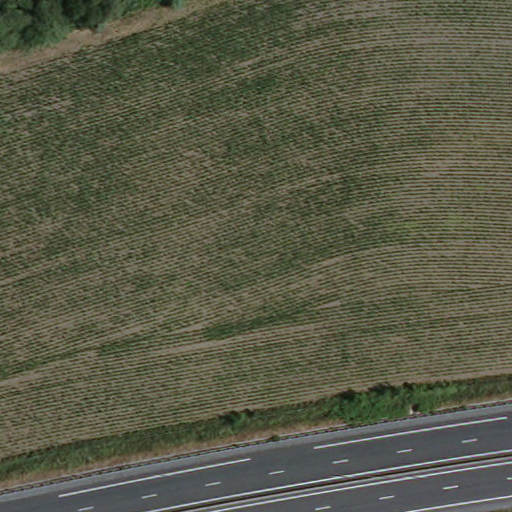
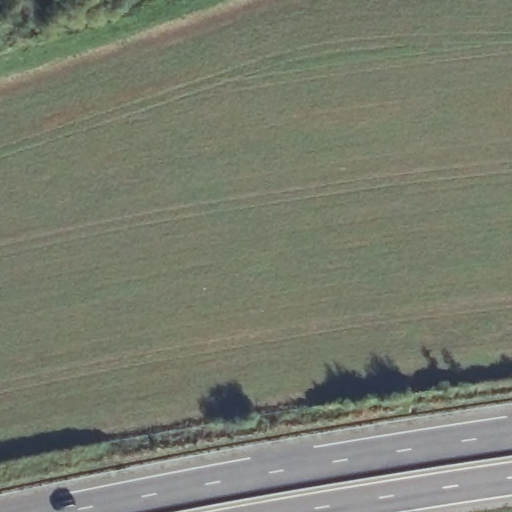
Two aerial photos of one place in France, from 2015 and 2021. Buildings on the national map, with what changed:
[]

